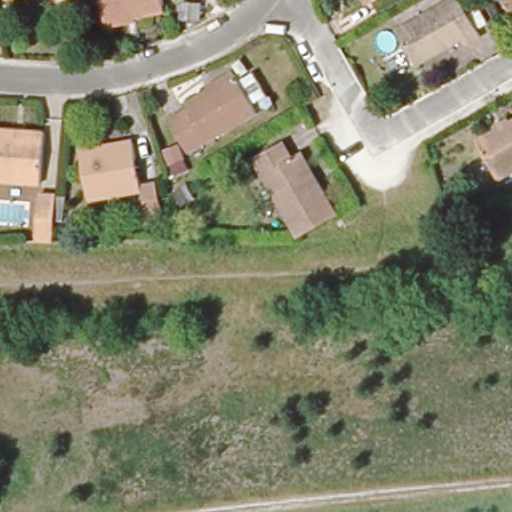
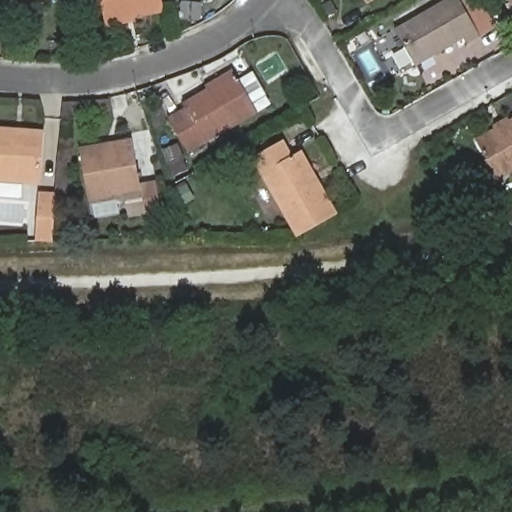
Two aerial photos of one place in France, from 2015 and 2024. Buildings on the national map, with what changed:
unchanged [(107,0),(166,0),(169,16),(111,25),(107,0)]
unchanged [(371,0),(374,0),(372,1),(371,0)]
unchanged [(397,30),(451,0),(463,0),(485,37),(470,45),(466,37),(417,65),(397,30)]
unchanged [(509,0),(512,0),(512,5),(509,0)]
unchanged [(181,108),(180,105),(205,89),(204,84),(230,70),(255,112),(185,150),(186,156),(167,164),(161,151),(179,141),(166,116),(181,108)]
unchanged [(502,179),(482,140),(498,132),(493,124),(512,114),(512,173),(502,179)]
unchanged [(0,127),(16,129),(15,135),(41,137),(41,145),(39,181),(0,178),(0,127)]
unchanged [(255,152),(284,135),(294,152),(298,149),(314,181),(320,178),(338,210),(299,231),(255,152)]
unchanged [(127,139),(137,182),(152,180),(159,210),(144,213),(137,193),(90,201),(78,147),(127,139)]
unchanged [(54,195),(49,239),(31,238),(36,192),(54,195)]

